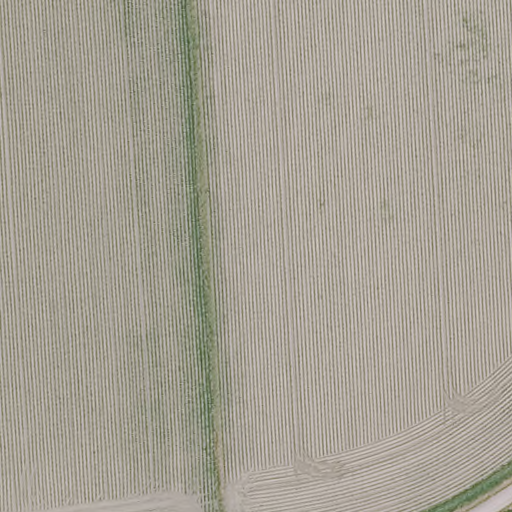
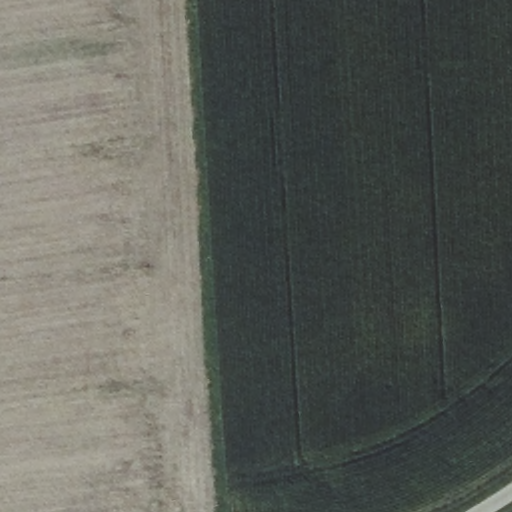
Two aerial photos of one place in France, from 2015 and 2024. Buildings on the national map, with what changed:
[]

